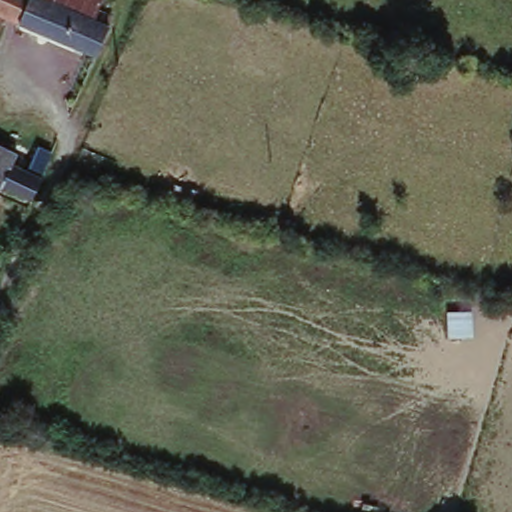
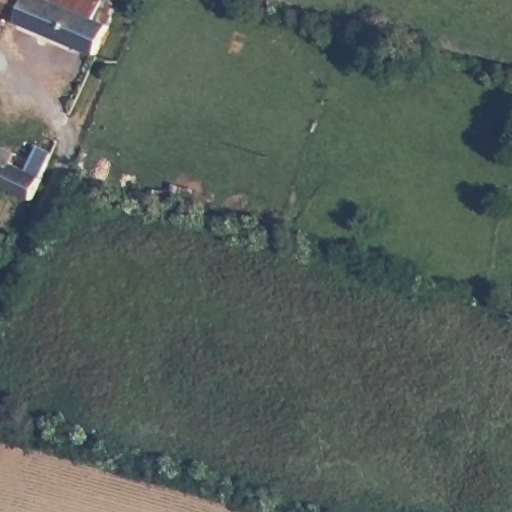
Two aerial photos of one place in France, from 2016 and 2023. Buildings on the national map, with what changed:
unchanged [(107,24),(90,57),(0,12),(0,0),(101,0),(93,18),(107,24)]
unchanged [(6,161),(23,170),(33,153),(38,151),(52,156),(34,192),(30,202),(0,186),(0,142),(12,148),(6,161)]

